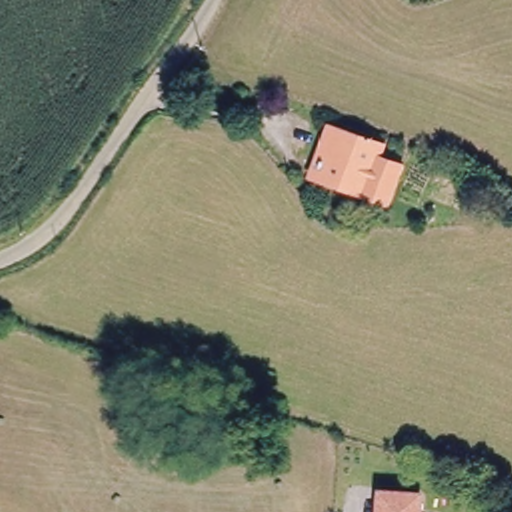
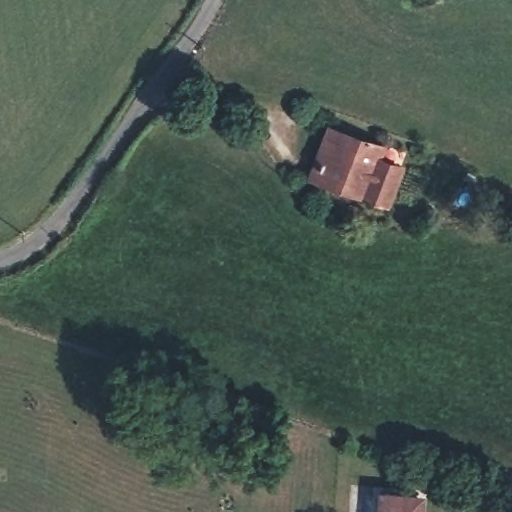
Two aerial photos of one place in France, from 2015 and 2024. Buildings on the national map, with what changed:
unchanged [(368,167),(385,175),(371,209),(352,201),(305,180),(322,133),(373,154),(368,167)]
unchanged [(419,501),(418,512),(379,512),(380,498),(419,501)]

